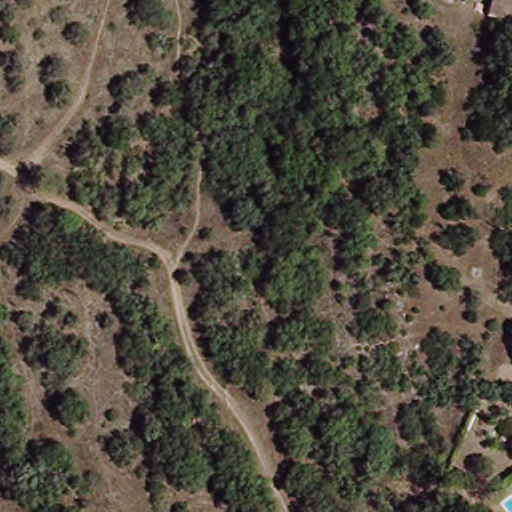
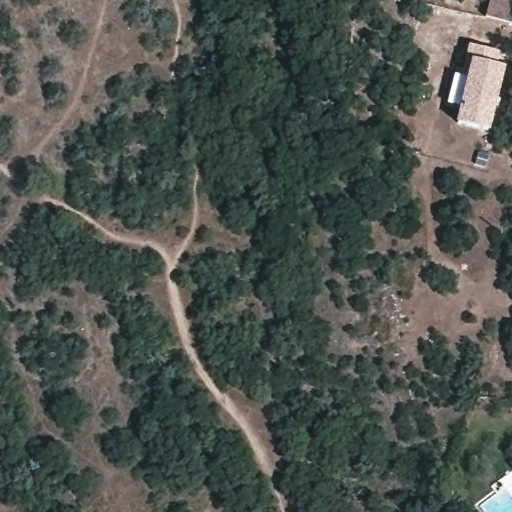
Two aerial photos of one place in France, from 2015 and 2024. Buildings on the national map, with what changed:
new [(497,58),(495,72),(502,73),(488,136),(445,126),(455,81),(450,80),(456,49),(497,58)]

